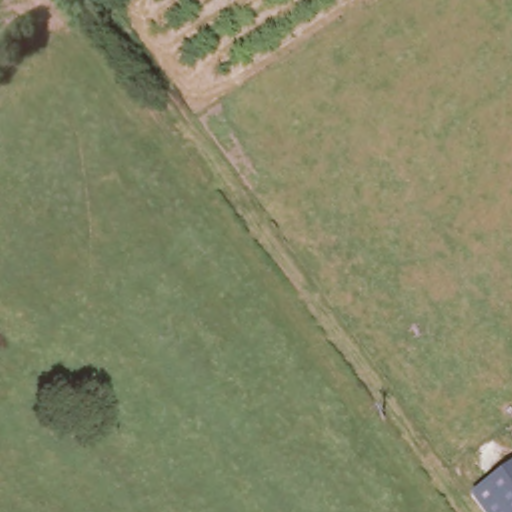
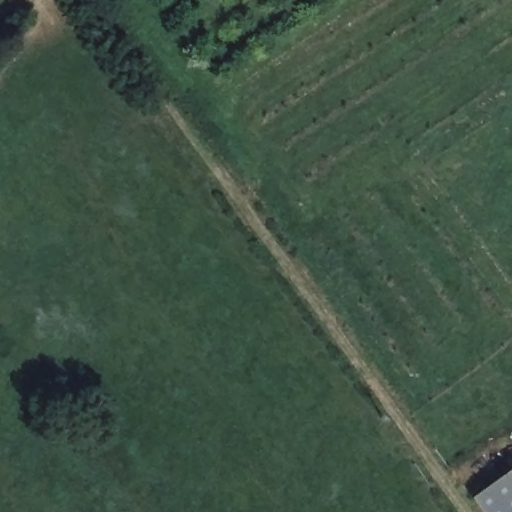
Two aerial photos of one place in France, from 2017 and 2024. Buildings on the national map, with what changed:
unchanged [(512,472),(512,512),(480,512),(472,501),(512,472)]

